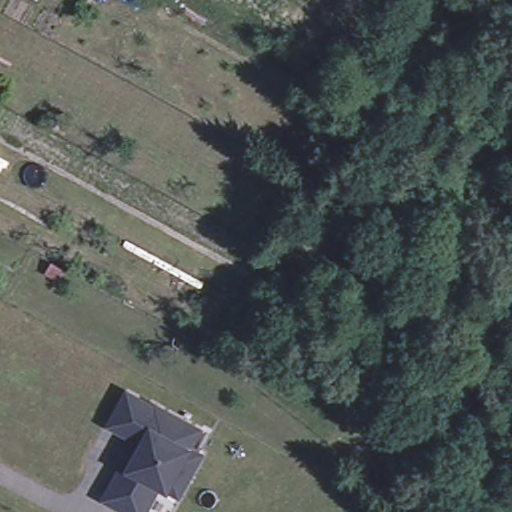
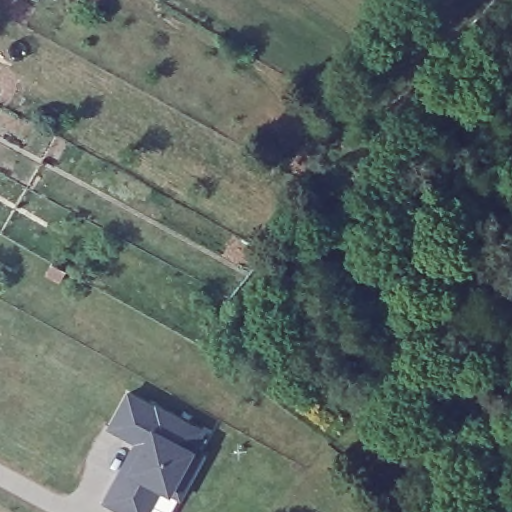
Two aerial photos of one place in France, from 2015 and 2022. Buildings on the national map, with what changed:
unchanged [(130,388),(157,403),(139,437),(111,422),(130,388)]
unchanged [(106,496),(139,437),(157,403),(158,401),(203,426),(193,445),(204,451),(181,493),(171,512),(136,512),(106,496)]

